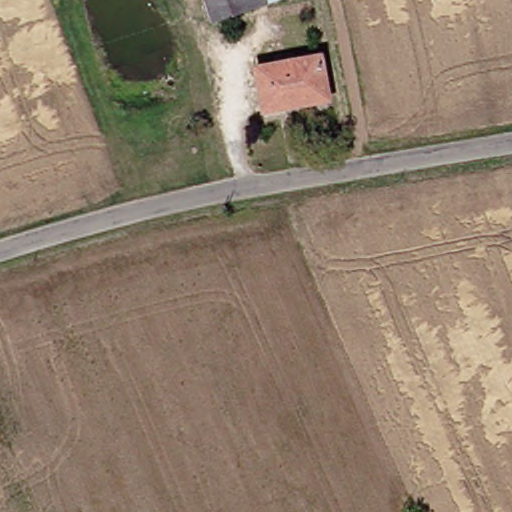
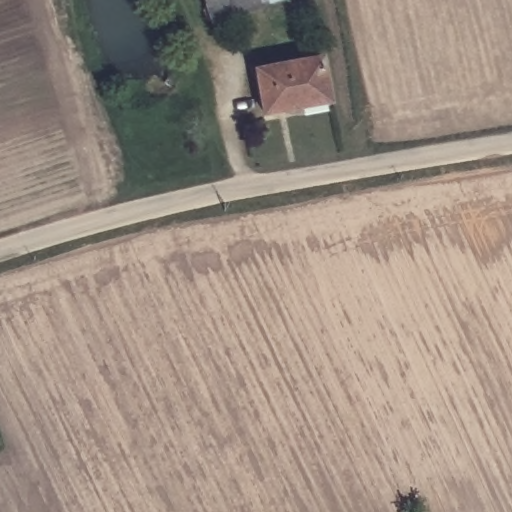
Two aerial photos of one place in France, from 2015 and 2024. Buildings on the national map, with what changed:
unchanged [(260,8),(207,26),(199,0),(258,0),(260,8)]
unchanged [(260,8),(258,0),(283,0),(260,8)]
unchanged [(322,104),(259,116),(251,73),(315,62),(322,104)]

